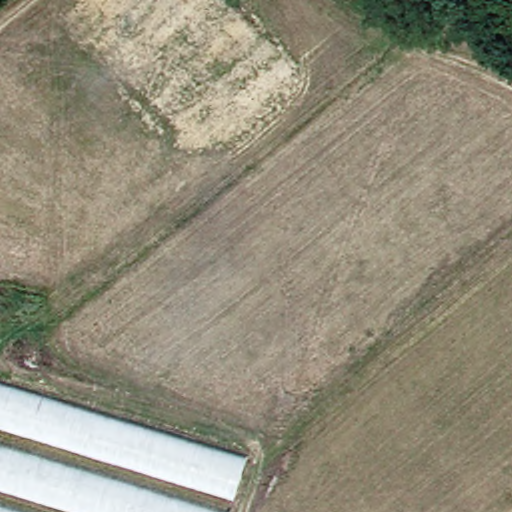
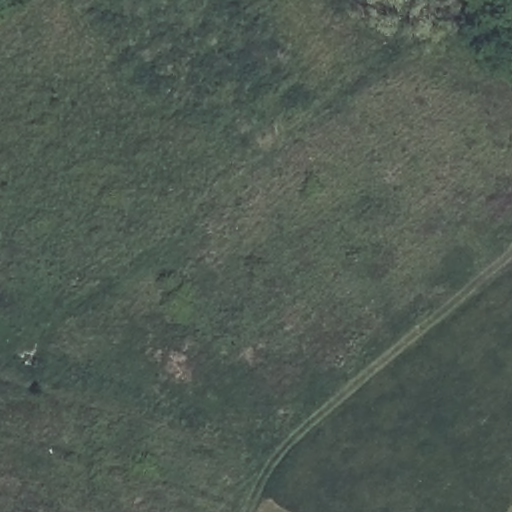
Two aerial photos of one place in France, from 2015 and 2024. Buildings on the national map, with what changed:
demolished [(0,425),(0,385),(235,455),(224,491),(0,425)]
demolished [(213,512),(89,512),(0,486),(0,448),(213,512)]
demolished [(12,512),(0,512),(0,508),(12,512)]

